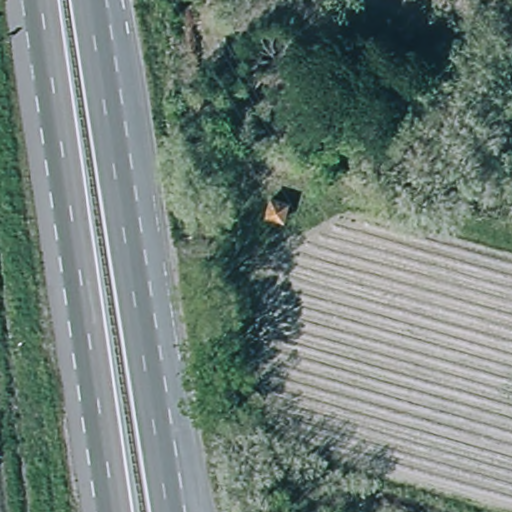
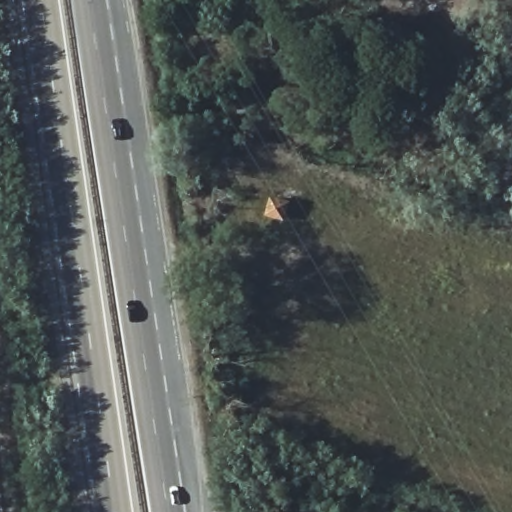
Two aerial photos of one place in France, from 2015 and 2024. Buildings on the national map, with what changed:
unchanged [(277,203),(294,208),(289,226),(272,221),(277,203)]

